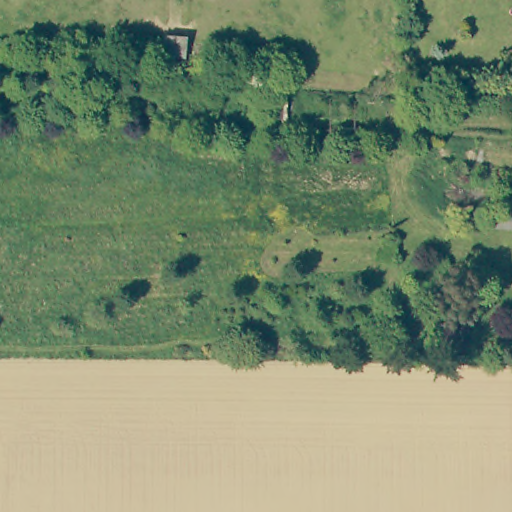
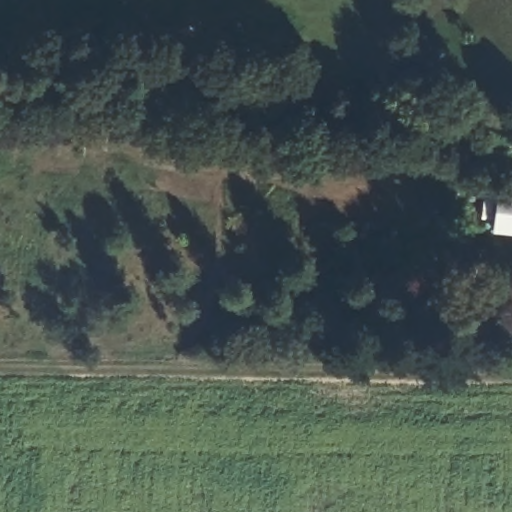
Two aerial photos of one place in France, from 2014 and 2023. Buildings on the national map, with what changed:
unchanged [(485,209),(512,212),(512,229),(483,226),(485,209)]

